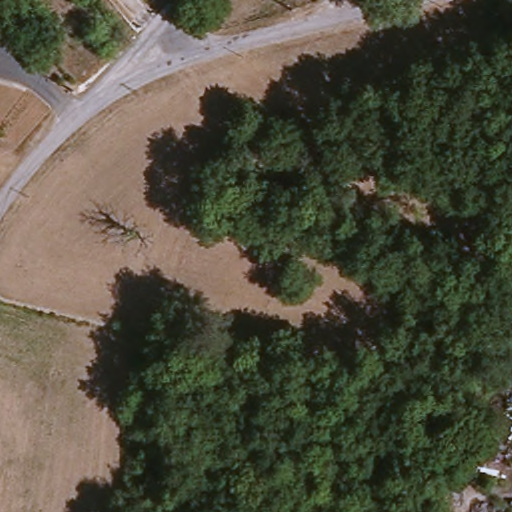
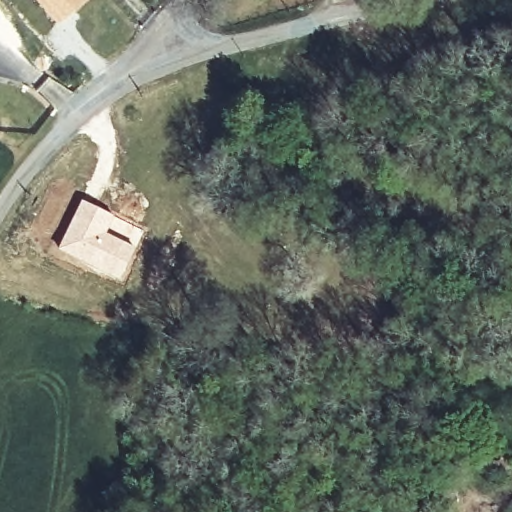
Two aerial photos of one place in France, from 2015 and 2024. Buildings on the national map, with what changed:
new [(36,0),(82,0),(56,22),(36,0)]
new [(81,199),(145,230),(120,281),(57,248),(81,199)]

